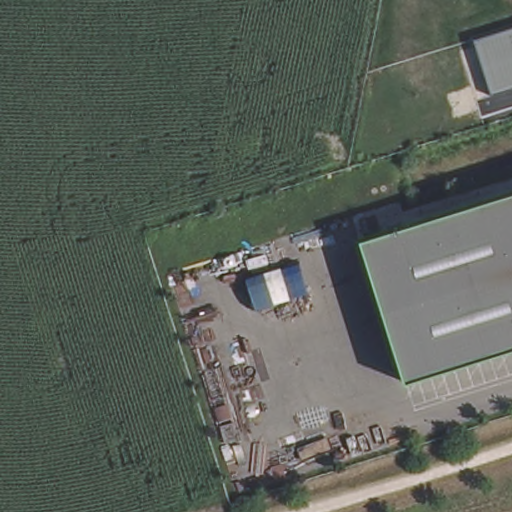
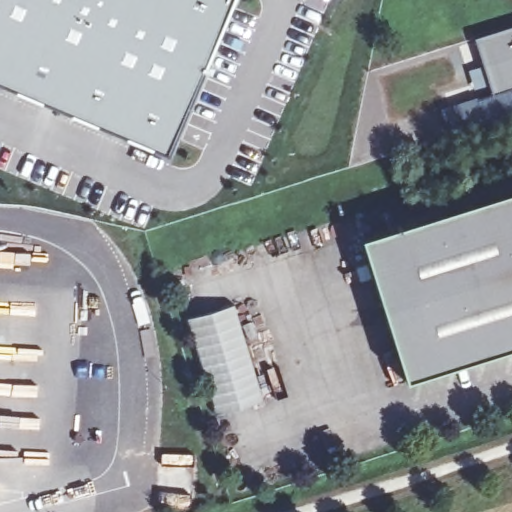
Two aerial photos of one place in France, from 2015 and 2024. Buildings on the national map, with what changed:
new [(166,154),(0,84),(0,0),(234,0),(166,154)]
unchanged [(491,94),(473,40),(512,27),(512,88),(491,94)]
unchanged [(512,191),(512,347),(405,381),(360,240),(512,191)]
new [(232,303),(262,400),(216,414),(185,318),(232,303)]

